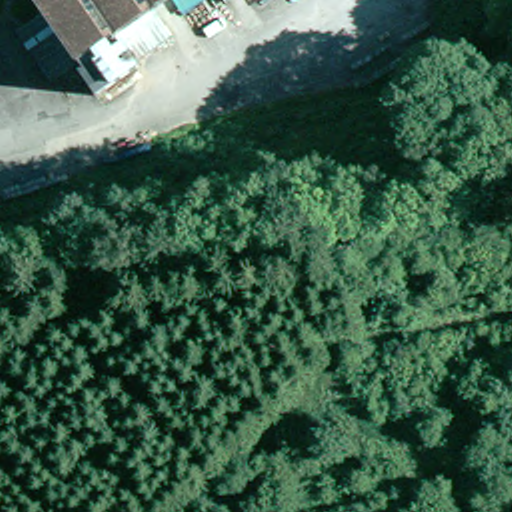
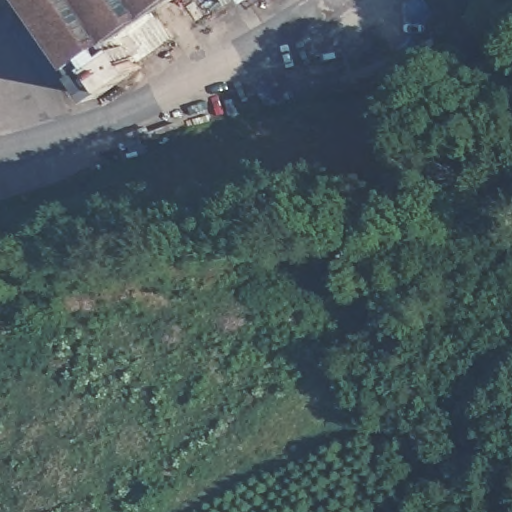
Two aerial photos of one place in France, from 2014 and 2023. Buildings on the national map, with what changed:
unchanged [(152,16),(123,37),(140,61),(147,71),(100,102),(85,80),(94,74),(88,65),(85,68),(55,23),(39,0),(174,0),(158,11),(152,16)]
unchanged [(236,0),(230,5),(226,0),(236,0)]
unchanged [(176,35),(140,61),(123,37),(152,16),(158,11),(176,35)]
unchanged [(60,86),(29,39),(55,23),(85,68),(60,86)]

